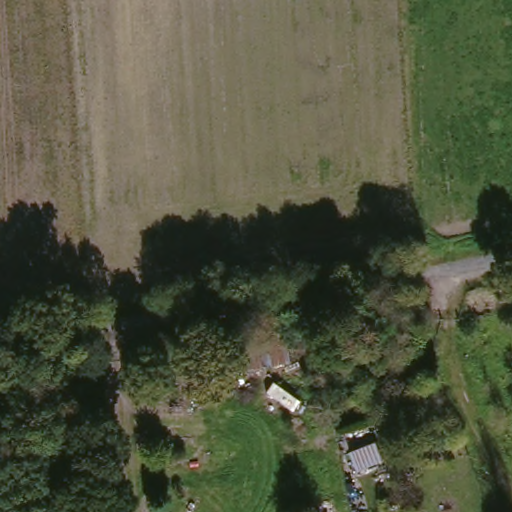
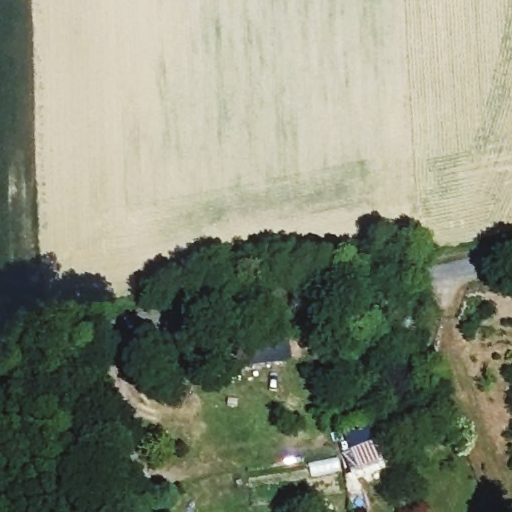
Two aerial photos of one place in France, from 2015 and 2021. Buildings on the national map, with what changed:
unchanged [(293,369),(243,375),(241,355),(292,348),(293,369)]
unchanged [(380,462),(354,472),(348,455),(375,444),(380,462)]

